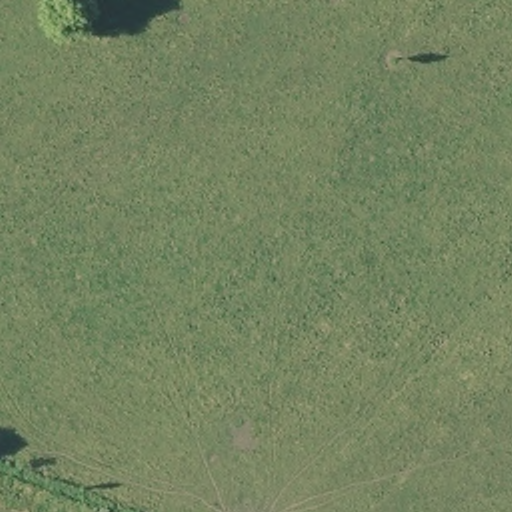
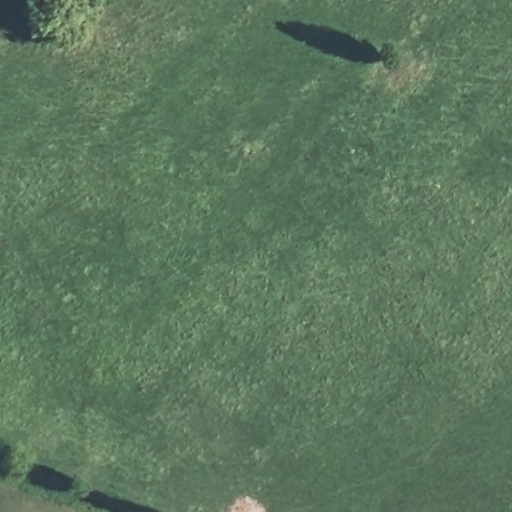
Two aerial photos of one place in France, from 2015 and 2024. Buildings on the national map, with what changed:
[]

